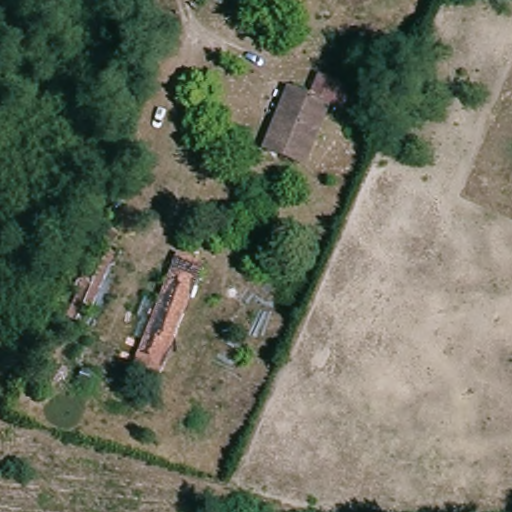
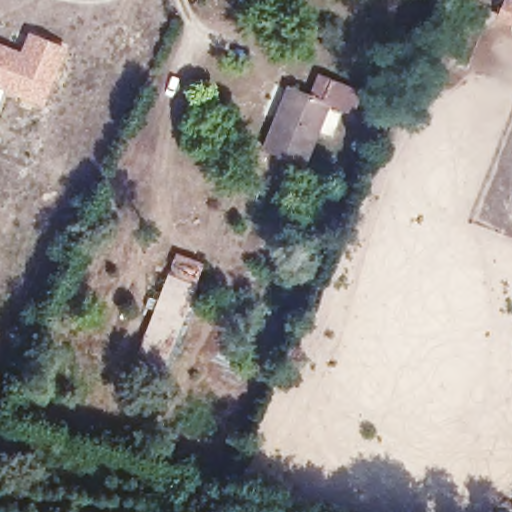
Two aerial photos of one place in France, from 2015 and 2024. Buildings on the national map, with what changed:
new [(502,0),(512,0),(512,25),(494,19),(502,0)]
new [(0,87),(0,44),(19,53),(27,31),(65,47),(45,105),(0,87)]
unchanged [(335,131),(322,126),(306,169),(258,149),(280,94),(298,99),(306,81),(347,98),(335,131)]
unchanged [(142,369),(179,273),(184,259),(209,269),(204,282),(166,378),(142,369)]

